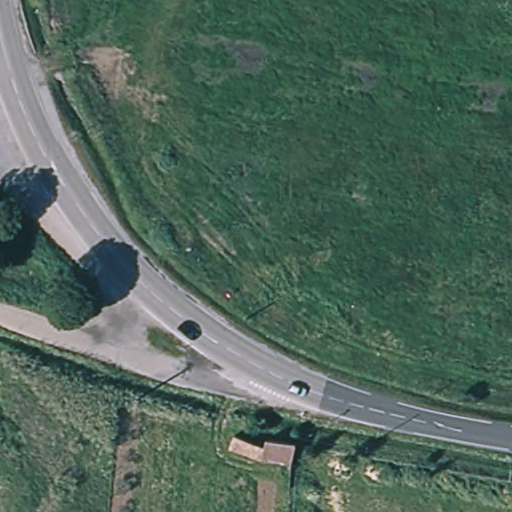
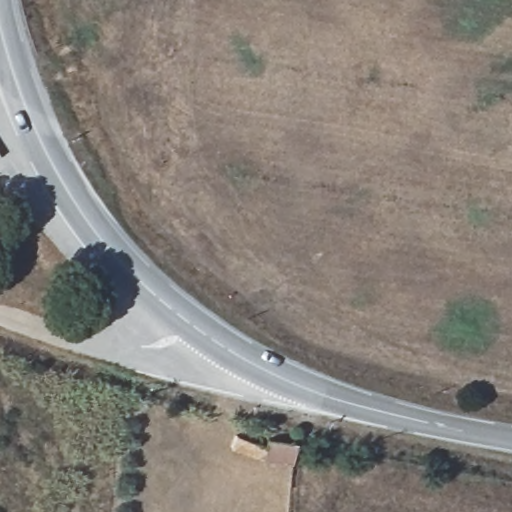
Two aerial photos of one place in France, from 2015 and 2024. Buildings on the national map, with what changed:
unchanged [(271,435),(273,428),(302,433),(297,455),(261,448),(236,438),(241,424),(271,435)]

